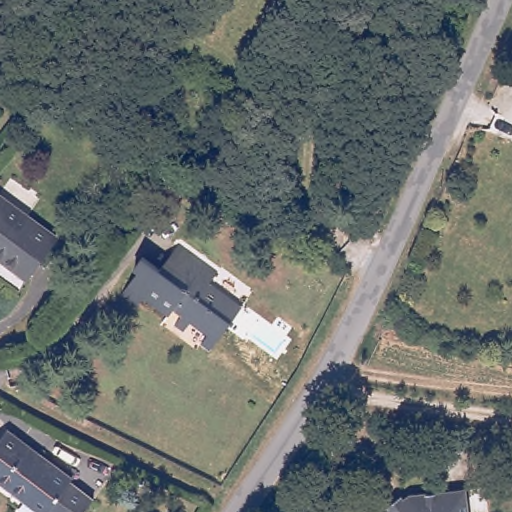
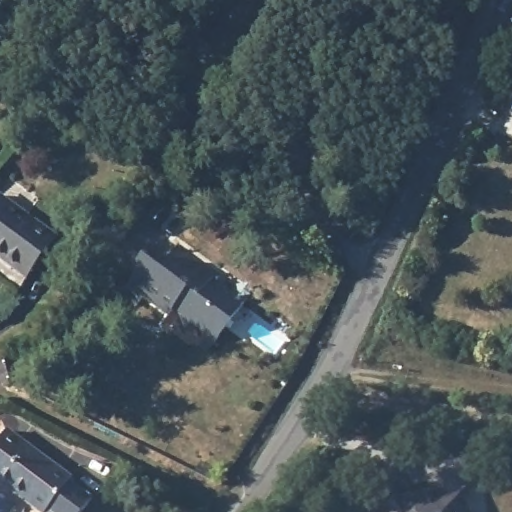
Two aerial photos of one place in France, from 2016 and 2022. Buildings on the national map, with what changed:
unchanged [(58,237),(28,275),(0,254),(0,194),(1,194),(58,237)]
unchanged [(208,278),(203,285),(238,313),(202,359),(192,349),(201,339),(188,327),(179,337),(170,329),(181,317),(174,310),(165,319),(141,301),(133,310),(118,297),(133,280),(126,275),(136,262),(150,273),(171,249),(208,278)]
unchanged [(0,474),(0,435),(9,423),(68,472),(66,475),(89,493),(74,512),(39,512),(43,508),(0,474)]
unchanged [(389,512),(390,512),(388,507),(401,496),(404,499),(413,495),(467,488),(469,512),(389,512)]

